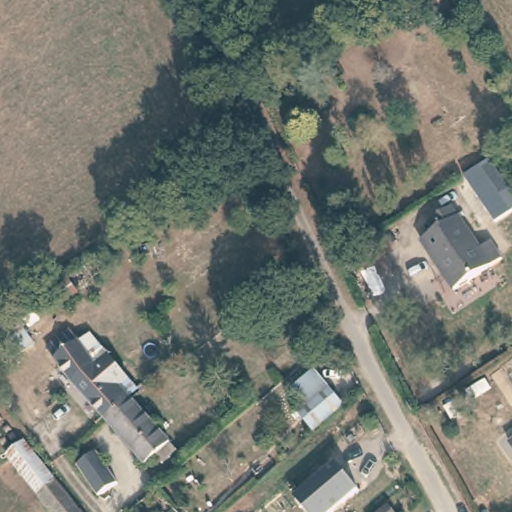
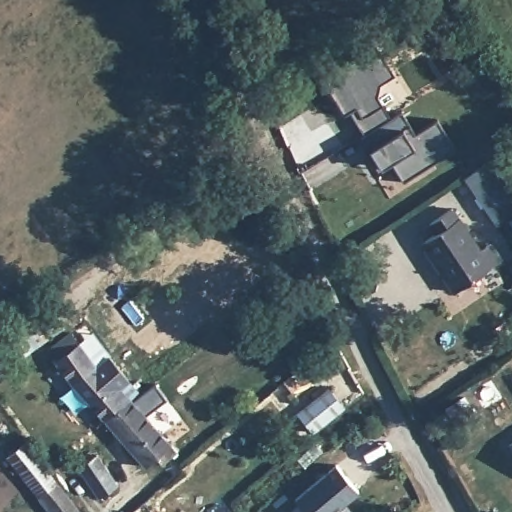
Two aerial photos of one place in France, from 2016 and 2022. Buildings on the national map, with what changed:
new [(403,181),(393,160),(382,167),(371,149),(374,146),(350,112),(346,115),(321,77),(376,41),(396,75),(380,84),(377,97),(392,117),(402,110),(417,132),(438,118),(457,147),(403,181)]
unchanged [(512,190),(512,209),(498,219),(492,211),(489,212),(466,180),(492,162),(512,190)]
unchanged [(455,292),(423,242),(437,232),(432,222),(452,209),(482,251),(492,245),(502,261),(455,292)]
unchanged [(17,359),(0,335),(0,334),(19,321),(37,345),(17,359)]
unchanged [(45,350),(69,332),(78,344),(90,336),(107,357),(125,379),(115,387),(127,399),(101,420),(76,392),(45,350)]
unchanged [(328,386),(347,408),(317,433),(297,412),(328,386)]
unchanged [(174,451),(161,465),(153,457),(142,465),(101,420),(127,399),(132,405),(174,451)]
unchanged [(10,457),(27,442),(58,482),(82,512),(83,512),(53,512),(40,495),(10,457)]
unchanged [(512,443),(512,445),(511,444),(512,443)]
unchanged [(99,454),(119,484),(102,497),(78,466),(99,454)]
unchanged [(307,512),(295,498),(333,467),(358,491),(335,512),(307,512)]

